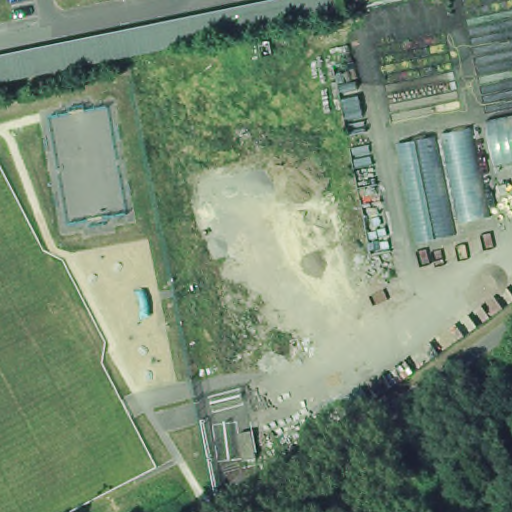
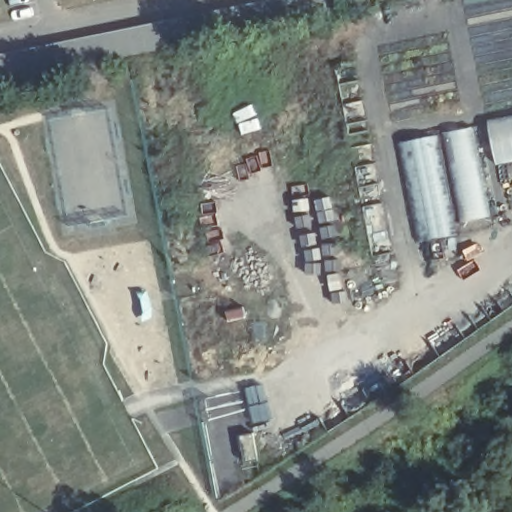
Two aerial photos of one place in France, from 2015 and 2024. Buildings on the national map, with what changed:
unchanged [(266,0),(340,0),(343,12),(0,83),(0,54),(266,0)]
unchanged [(58,0),(73,0),(59,3),(58,0)]
unchanged [(512,120),(512,172),(487,176),(480,125),(512,120)]
unchanged [(455,227),(438,132),(474,125),(490,219),(455,227)]
unchanged [(445,241),(415,249),(390,146),(426,140),(445,241)]

